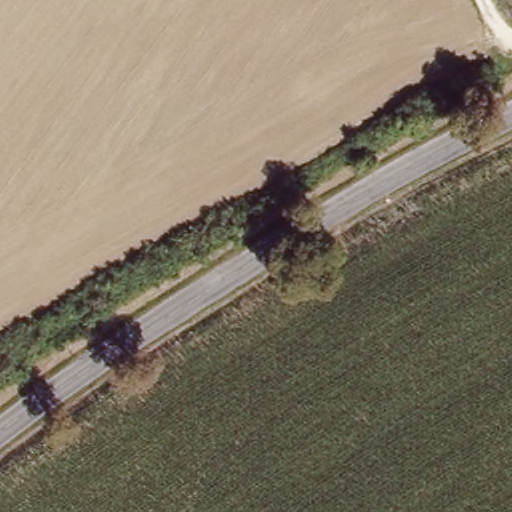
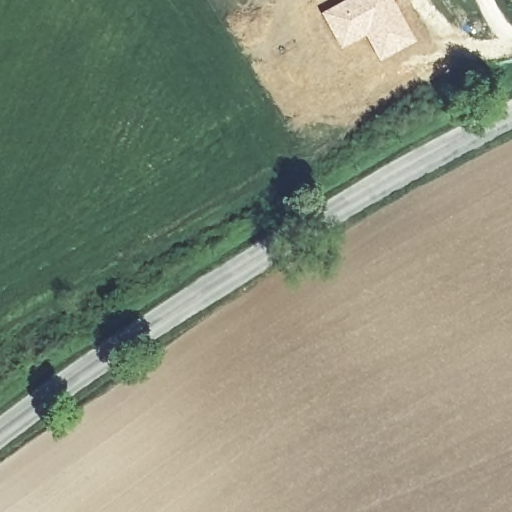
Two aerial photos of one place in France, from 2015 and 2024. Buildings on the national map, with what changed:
new [(344,0),(393,0),(416,42),(379,62),(365,37),(340,49),(321,12),(344,0)]

